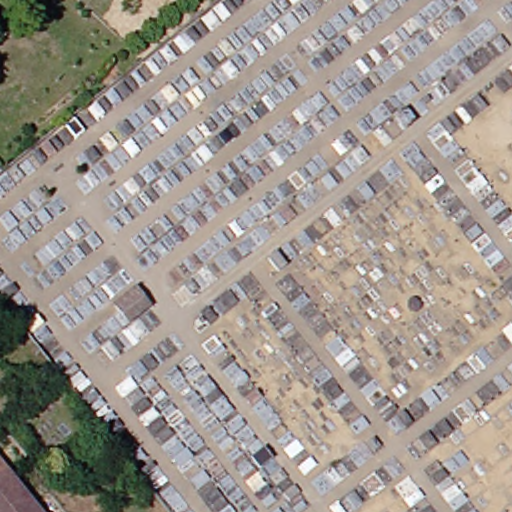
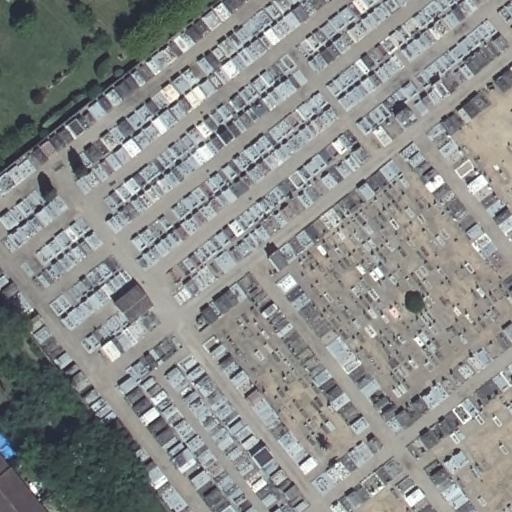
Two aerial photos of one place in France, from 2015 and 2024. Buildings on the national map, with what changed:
unchanged [(32,512),(0,512),(0,472),(27,505),(32,512)]

